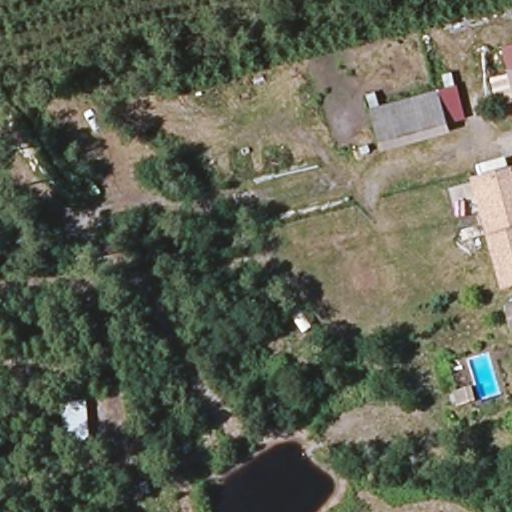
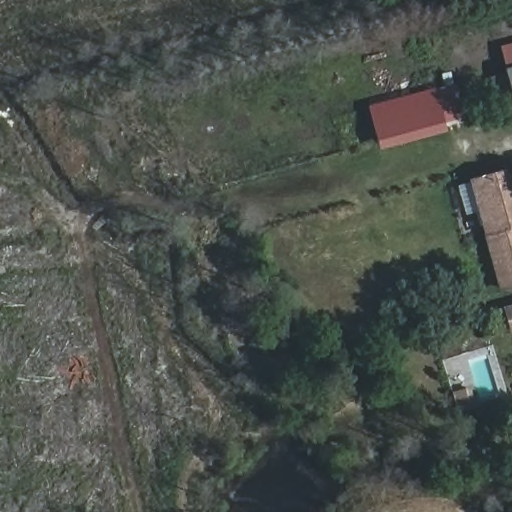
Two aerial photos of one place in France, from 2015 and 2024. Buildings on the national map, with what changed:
unchanged [(499,45),(512,41),(512,68),(505,70),(499,45)]
unchanged [(505,70),(512,68),(512,97),(505,70)]
unchanged [(371,108),(435,91),(457,86),(466,117),(447,124),(449,131),(382,149),(371,108)]
unchanged [(501,292),(485,237),(470,180),(511,169),(512,174),(512,289),(501,292)]
unchanged [(505,330),(498,305),(512,301),(512,328),(505,330)]

